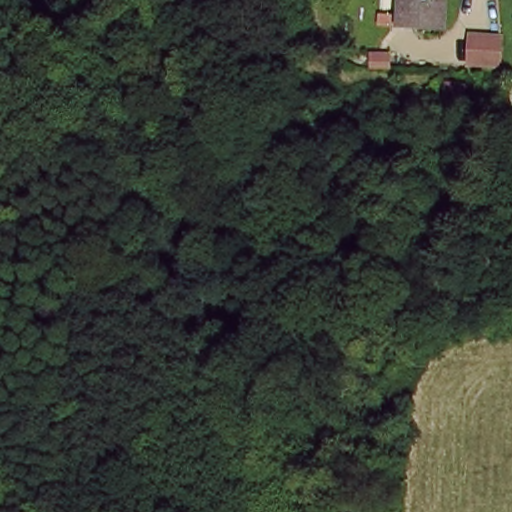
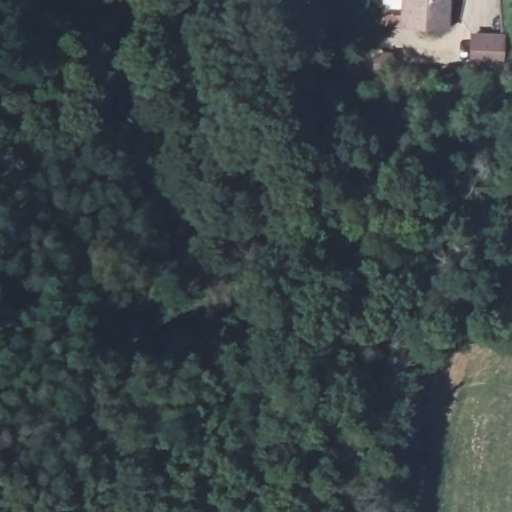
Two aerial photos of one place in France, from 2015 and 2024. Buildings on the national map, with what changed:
unchanged [(409,28),(410,0),(456,0),(455,30),(409,28)]
unchanged [(475,36),(500,36),(500,63),(474,63),(475,36)]

